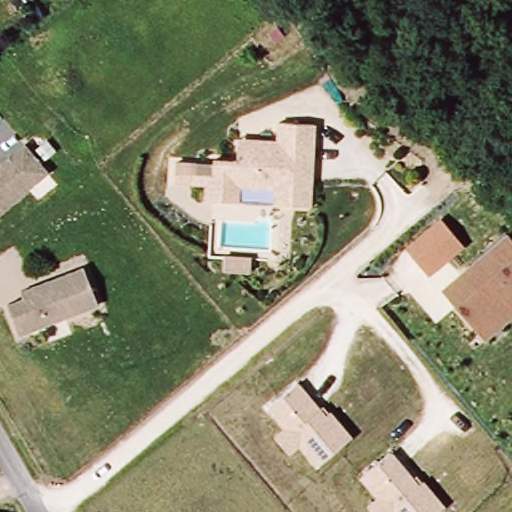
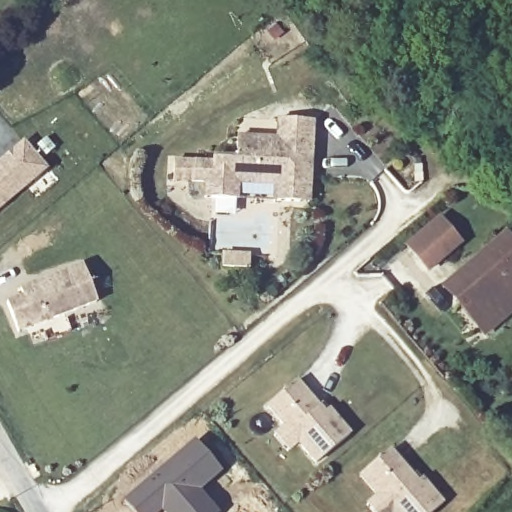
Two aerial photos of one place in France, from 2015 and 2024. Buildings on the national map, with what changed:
unchanged [(236,197),(236,196),(205,194),(206,178),(194,177),(174,176),(175,157),(195,158),(212,160),(213,154),(236,155),(237,139),(237,134),(277,137),(278,117),(313,119),(312,141),(311,155),(310,172),(308,201),(299,200),(273,198),(273,199),(236,197)]
unchanged [(48,143),(56,153),(45,162),(37,152),(48,143)]
unchanged [(25,147),(45,173),(0,209),(0,167),(25,147)]
new [(439,216),(462,244),(427,273),(403,246),(439,216)]
unchanged [(503,231),(512,241),(512,313),(482,337),(438,285),(503,231)]
unchanged [(11,311),(28,305),(25,298),(88,275),(101,313),(22,341),(11,311)]
unchanged [(267,405),(295,382),(322,413),(327,408),(347,434),(317,461),(267,405)]
new [(191,442),(221,473),(201,491),(223,511),(222,512),(163,512),(162,512),(133,512),(123,500),(191,442)]
unchanged [(390,452),(415,482),(420,477),(442,504),(431,512),(392,512),(361,474),(390,452)]

